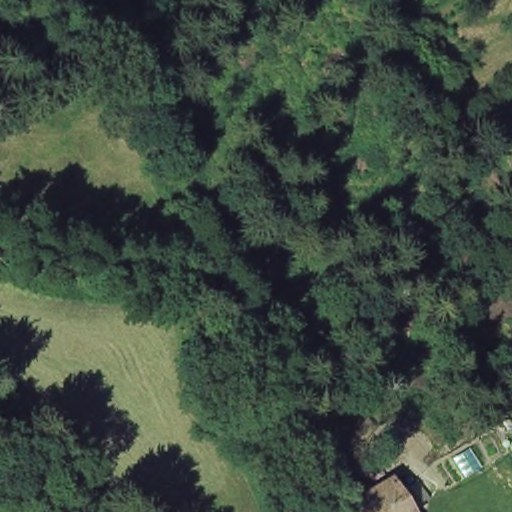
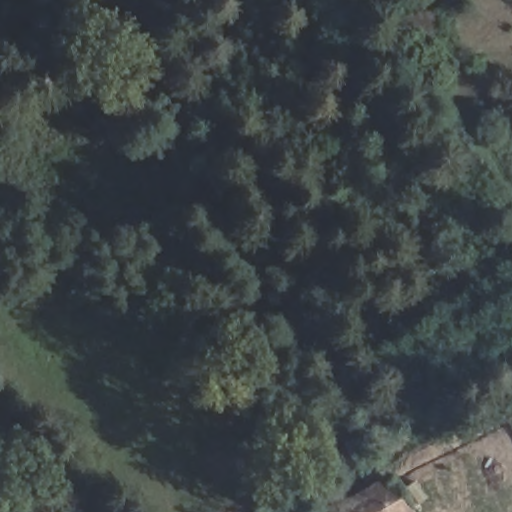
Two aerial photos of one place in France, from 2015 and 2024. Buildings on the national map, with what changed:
unchanged [(339,511),(338,510),(365,491),(388,474),(393,480),(411,506),(401,512),(339,512),(339,511)]

